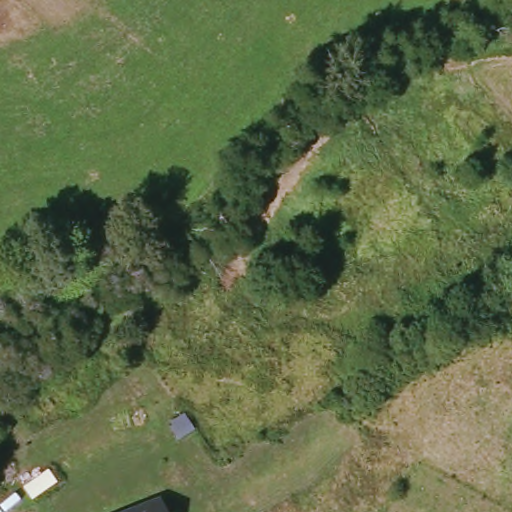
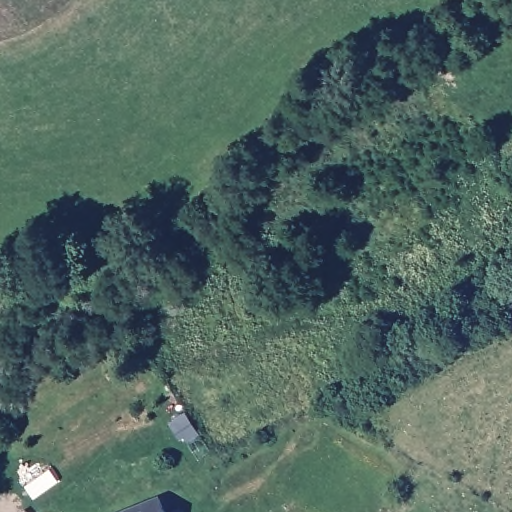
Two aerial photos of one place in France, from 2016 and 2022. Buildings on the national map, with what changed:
unchanged [(170,512),(116,512),(164,495),(170,512)]

